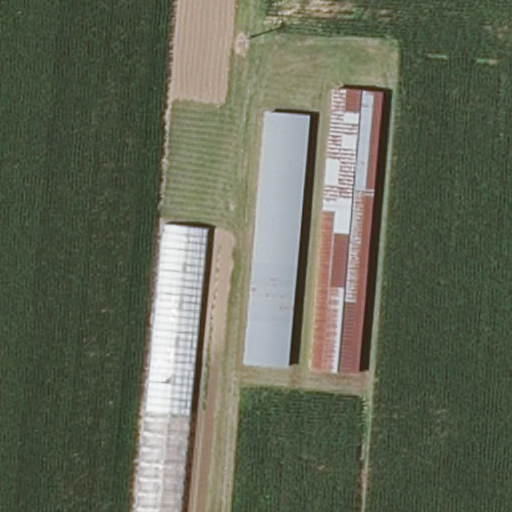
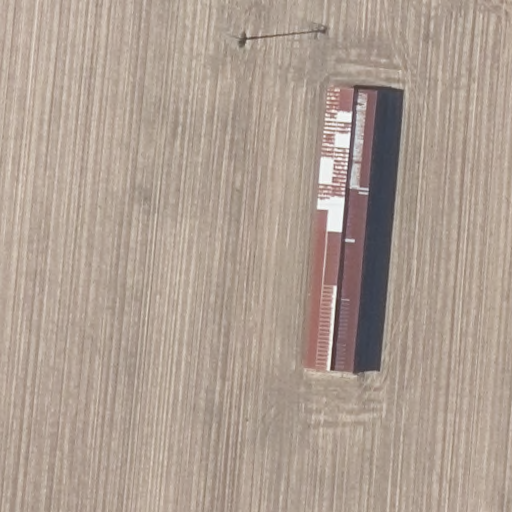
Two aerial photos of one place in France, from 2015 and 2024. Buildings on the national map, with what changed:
demolished [(216,97),(171,95),(180,0),(226,0),(216,97)]
unchanged [(309,372),(331,89),(381,92),(357,374),(309,372)]
demolished [(266,117),(311,121),(292,370),(247,367),(266,117)]
demolished [(136,512),(163,224),(209,227),(182,512),(136,512)]

